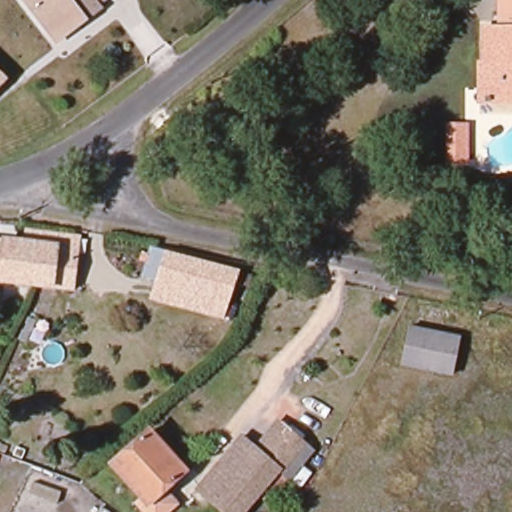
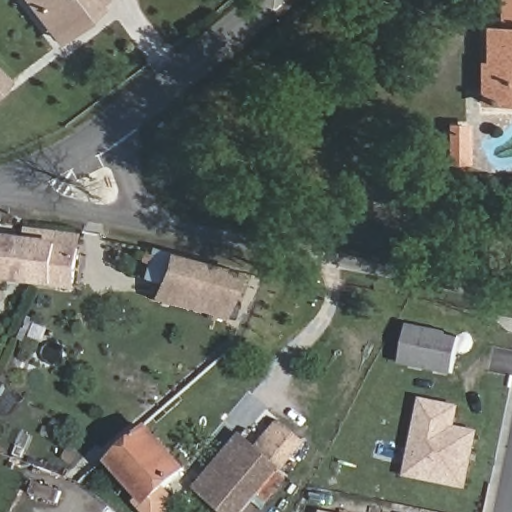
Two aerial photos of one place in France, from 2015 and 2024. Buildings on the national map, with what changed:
unchanged [(97,8),(56,39),(26,0),(91,0),(97,8)]
unchanged [(476,104),(476,62),(481,62),(481,26),(499,26),(499,0),(512,0),(512,104),(476,104)]
unchanged [(0,82),(0,74),(4,78),(0,82)]
unchanged [(466,160),(447,160),(447,125),(466,125),(466,160)]
unchanged [(40,266),(37,287),(0,284),(0,243),(5,244),(6,240),(26,240),(25,265),(40,266)]
unchanged [(61,244),(62,247),(84,250),(79,291),(37,287),(40,266),(25,265),(26,240),(61,244)]
unchanged [(234,271),(223,319),(151,300),(163,252),(234,271)]
unchanged [(458,338),(449,378),(401,367),(409,326),(458,338)]
new [(422,402),(455,408),(451,428),(474,433),(470,453),(466,452),(464,460),(469,461),(463,485),(422,477),(407,474),(414,442),(422,402)]
unchanged [(251,512),(227,512),(213,500),(257,449),(280,423),(307,445),(251,512)]
unchanged [(166,491),(179,506),(172,512),(143,512),(136,504),(140,499),(109,462),(147,430),(185,474),(166,491)]
unchanged [(213,500),(198,488),(242,436),(257,449),(213,500)]

